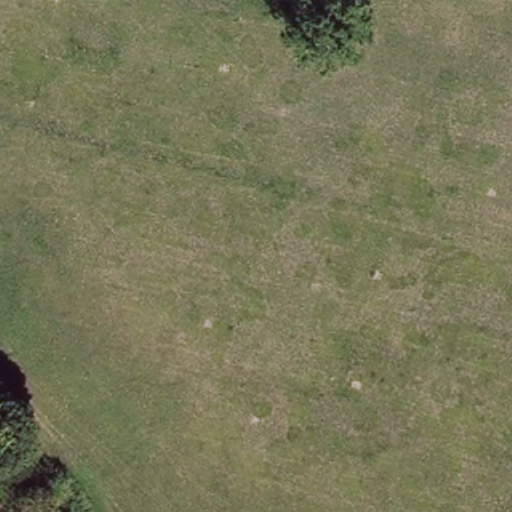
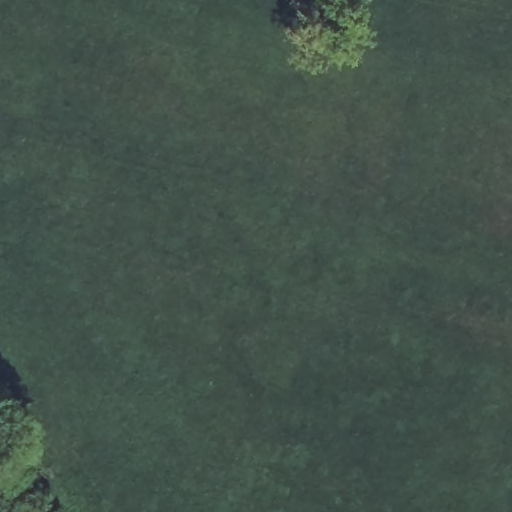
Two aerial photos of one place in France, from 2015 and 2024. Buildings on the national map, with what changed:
[]

